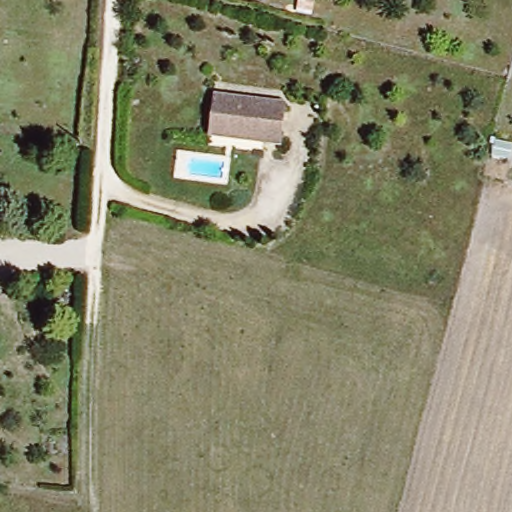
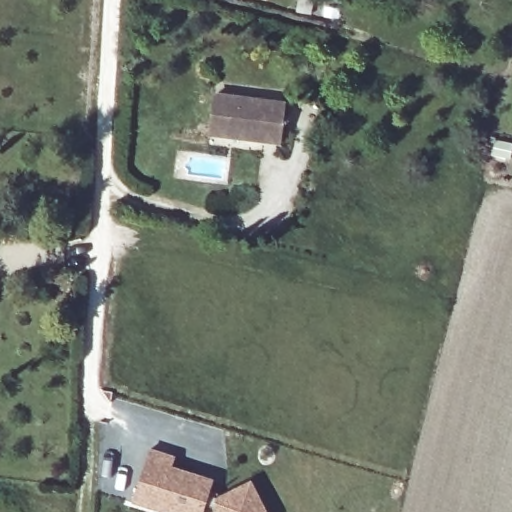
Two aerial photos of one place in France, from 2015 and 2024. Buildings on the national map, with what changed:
unchanged [(209,132),(214,92),(286,101),(281,141),(257,138),(255,153),(207,147),(209,132)]
new [(172,457),(169,467),(209,482),(205,496),(215,500),(247,485),(260,512),(213,512),(212,510),(201,507),(199,512),(164,512),(129,500),(147,448),(172,457)]

